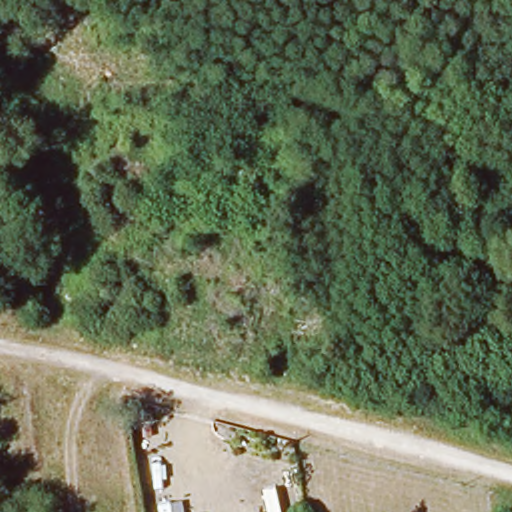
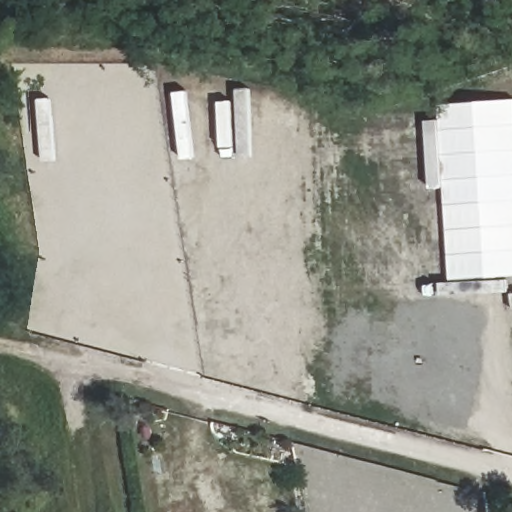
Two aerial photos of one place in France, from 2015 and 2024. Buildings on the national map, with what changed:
new [(512,279),(448,284),(436,103),(512,99),(512,279)]

